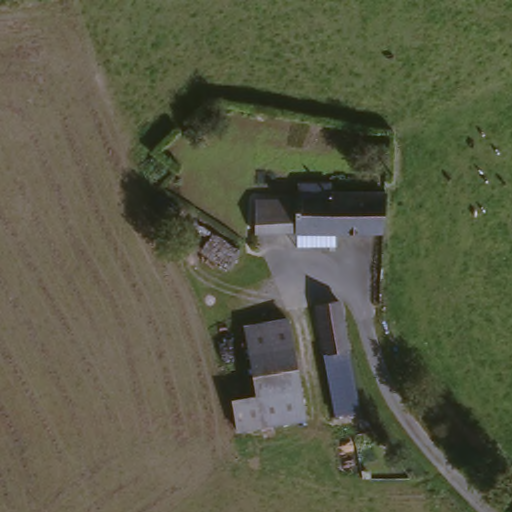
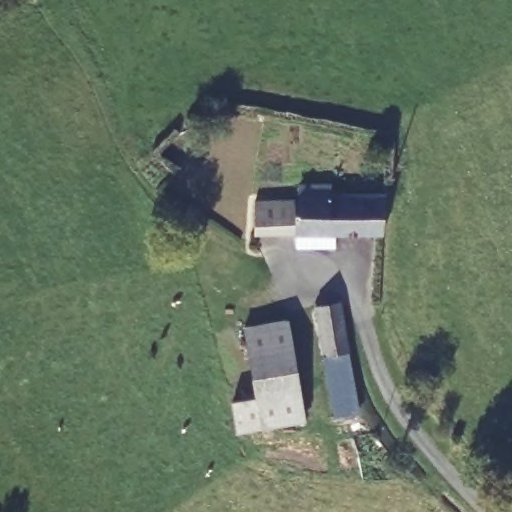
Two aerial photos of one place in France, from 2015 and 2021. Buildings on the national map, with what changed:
unchanged [(297,253),(295,239),(252,240),(253,205),(330,205),(332,200),(385,199),(381,237),(336,238),(336,253),(297,253)]
unchanged [(357,415),(334,420),(314,313),(337,309),(354,399),(357,415)]
unchanged [(304,427),(235,440),(229,403),(254,398),(240,329),(285,323),(304,427)]

